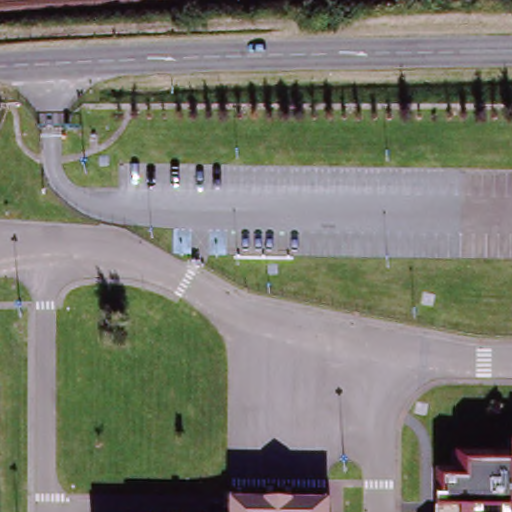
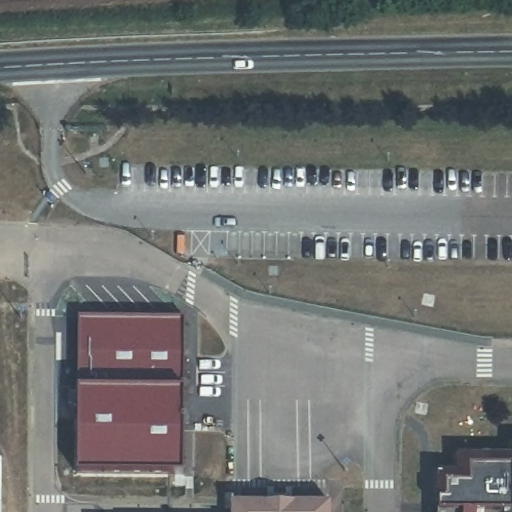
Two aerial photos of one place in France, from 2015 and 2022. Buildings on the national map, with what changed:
new [(184,318),(180,465),(77,464),(81,319),(184,318)]
unchanged [(439,479),(458,479),(458,458),(512,458),(512,512),(439,512),(439,479)]
new [(230,498),(328,499),(328,512),(230,512),(230,498)]
demolished [(334,512),(236,512),(236,507),(335,508),(334,512)]

